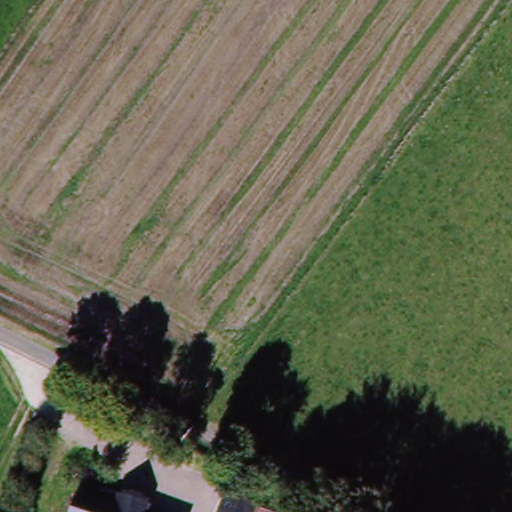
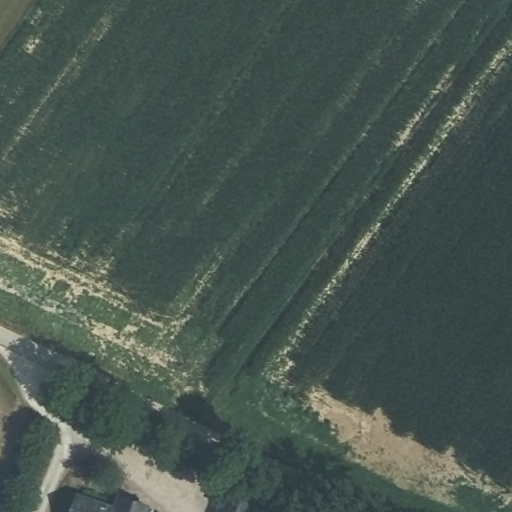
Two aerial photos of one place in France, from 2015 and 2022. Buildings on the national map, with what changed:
unchanged [(113,509),(117,496),(146,506),(144,512),(71,512),(77,496),(113,509)]
unchanged [(255,507),(254,512),(221,512),(227,496),(255,507)]

